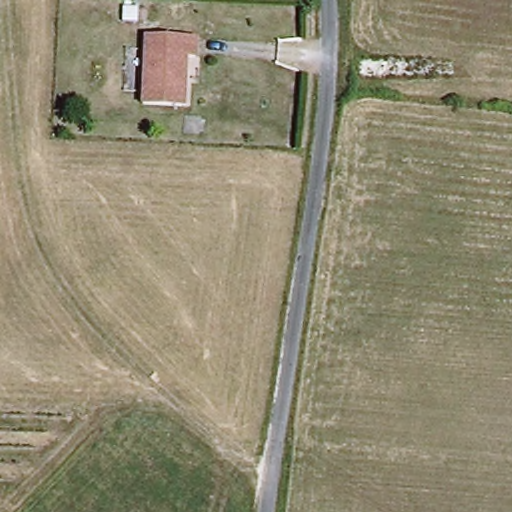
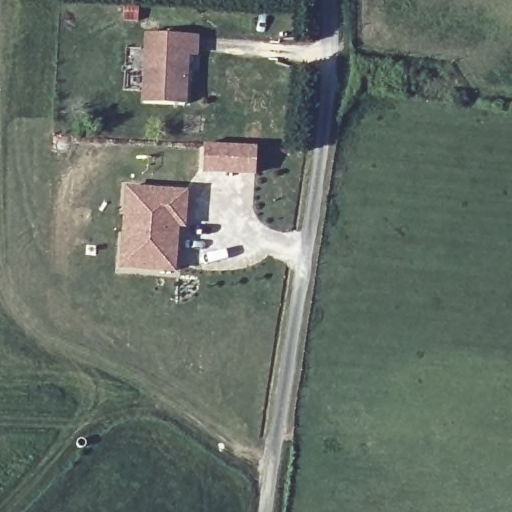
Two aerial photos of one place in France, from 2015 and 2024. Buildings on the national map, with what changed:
unchanged [(186,101),(144,100),(144,29),(194,29),(195,51),(187,51),(186,101)]
new [(205,145),(255,147),(255,175),(205,174),(205,145)]
new [(126,187),(133,187),(186,191),(184,218),(183,226),(177,225),(173,271),(119,267),(123,236),(126,187)]

